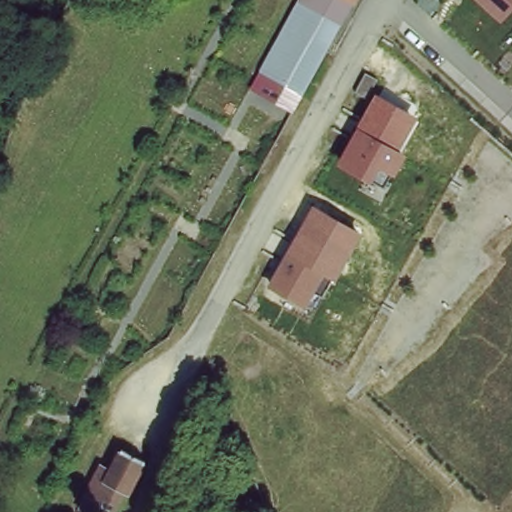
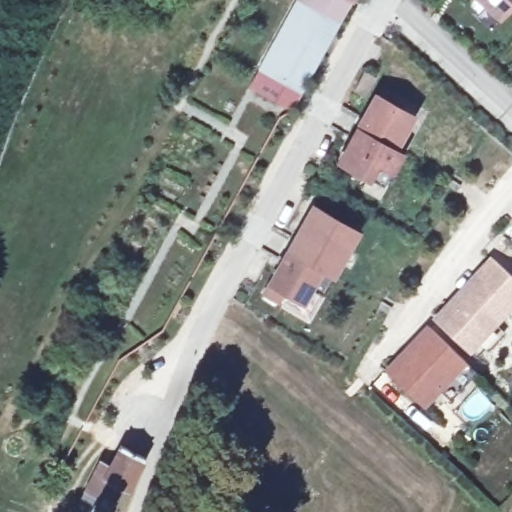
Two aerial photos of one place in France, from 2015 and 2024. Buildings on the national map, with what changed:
unchanged [(349,8),(343,20),(342,20),(292,113),(252,91),(291,17),(300,0),(353,0),(349,8)]
unchanged [(512,5),(498,21),(477,0),(512,0),(512,5)]
unchanged [(415,115),(398,149),(406,153),(394,174),(389,172),(382,185),(337,164),(375,93),(415,115)]
unchanged [(361,229),(335,279),(330,277),(322,295),(314,291),(306,306),(268,284),(312,204),(361,229)]
new [(512,216),(512,218),(511,217),(512,216)]
new [(433,316),(491,256),(512,275),(512,309),(471,353),(433,316)]
new [(426,409),(383,370),(427,324),(467,364),(426,409)]
unchanged [(76,512),(101,461),(102,458),(107,460),(117,437),(123,440),(145,451),(137,465),(113,512),(76,512)]

